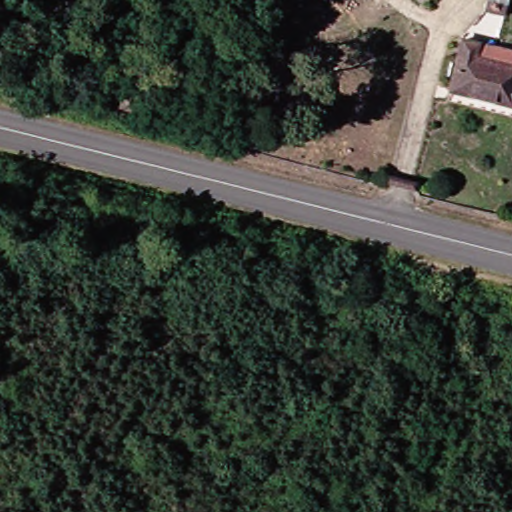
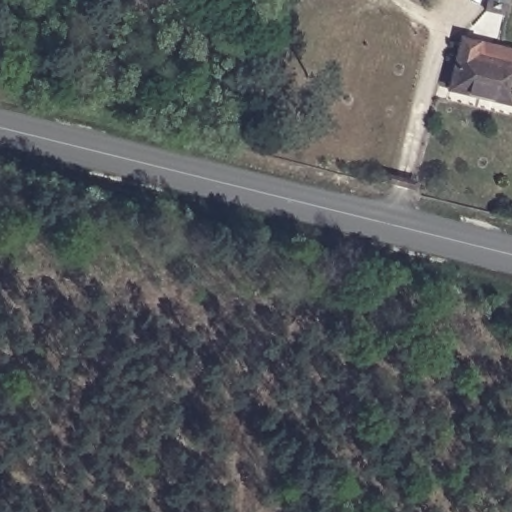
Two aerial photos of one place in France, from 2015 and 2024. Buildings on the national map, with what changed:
unchanged [(451,86),(466,38),(484,43),(512,50),(512,103),(451,86)]

